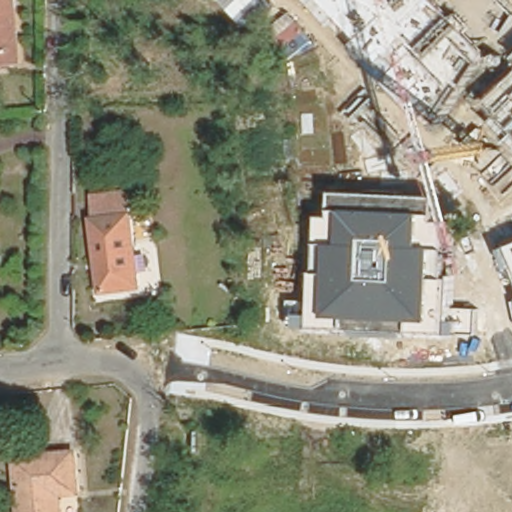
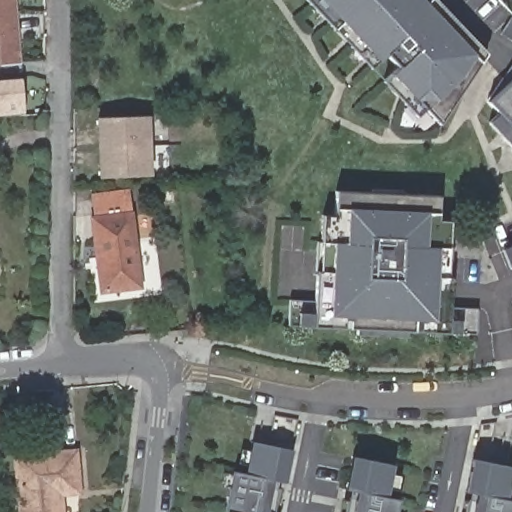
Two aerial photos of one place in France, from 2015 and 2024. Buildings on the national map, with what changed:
unchanged [(8,0),(15,57),(0,59),(0,0),(8,0)]
new [(426,111),(417,119),(306,0),(436,0),(487,54),(441,127),(426,111)]
new [(26,113),(0,116),(0,80),(21,78),(26,113)]
new [(498,112),(488,101),(512,78),(512,149),(488,122),(498,112)]
new [(151,176),(98,179),(95,119),(149,116),(151,176)]
unchanged [(453,306),(475,307),(474,335),(450,335),(312,326),(321,215),(335,215),(336,192),(439,196),(438,220),(455,221),(453,306)]
unchanged [(144,298),(104,303),(96,228),(99,227),(96,209),(133,205),(144,298)]
unchanged [(512,246),(512,257),(508,247),(512,246)]
new [(233,472),(246,474),(252,443),(291,451),(286,483),(275,481),(268,512),(225,512),(233,472)]
unchanged [(58,512),(17,512),(12,451),(71,446),(75,486),(56,487),(57,495),(58,512)]
new [(357,492),(346,490),(352,457),(393,465),(387,497),(398,499),(395,512),(353,512),(357,492)]
new [(476,494),(465,492),(471,459),(512,467),(506,499),(512,500),(512,512),(472,512),(476,494)]

